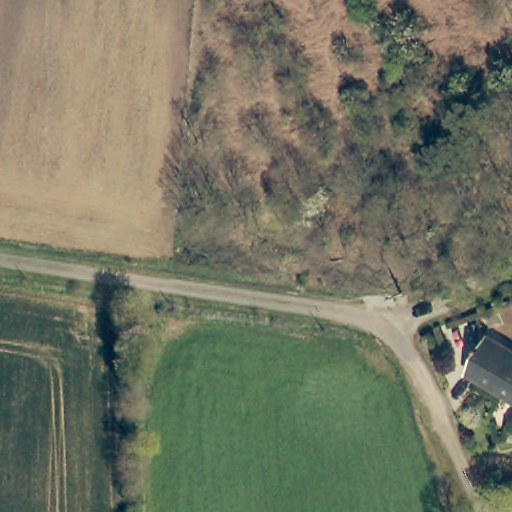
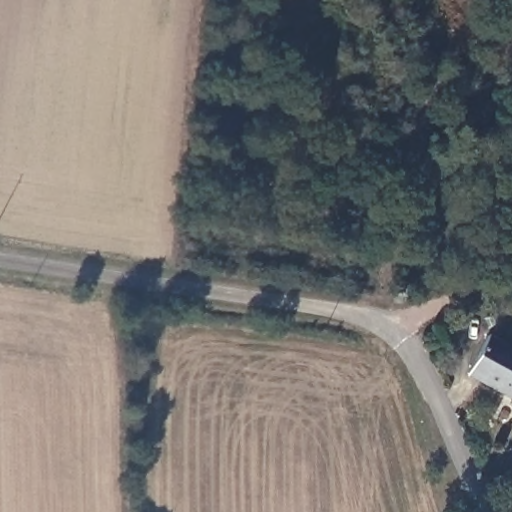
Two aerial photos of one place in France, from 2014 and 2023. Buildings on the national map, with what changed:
unchanged [(429,332),(432,340),(424,343),(421,335),(429,332)]
unchanged [(512,401),(462,370),(483,337),(512,354),(512,401)]

